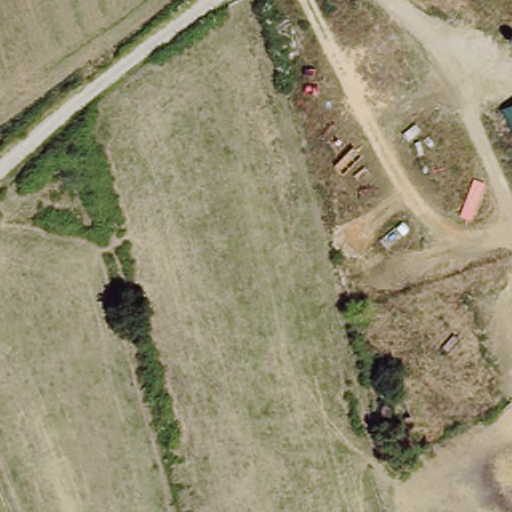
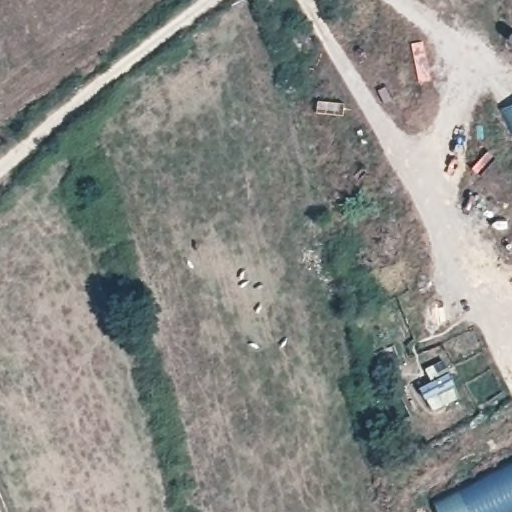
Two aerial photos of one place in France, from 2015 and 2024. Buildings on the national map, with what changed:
unchanged [(504,105),(512,100),(512,121),(504,105)]
unchanged [(411,415),(397,424),(381,392),(397,385),(411,415)]
new [(508,512),(438,512),(433,502),(512,459),(512,510),(508,512)]

